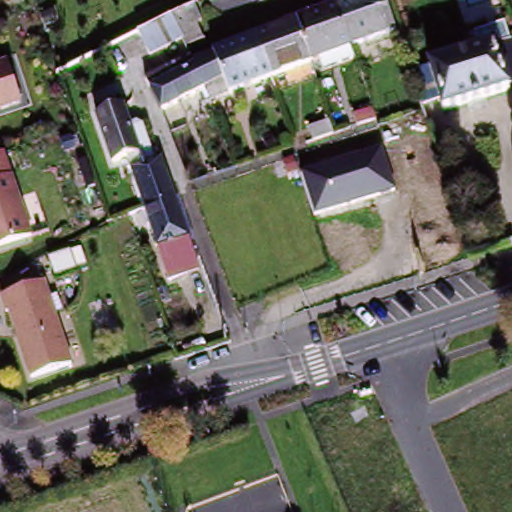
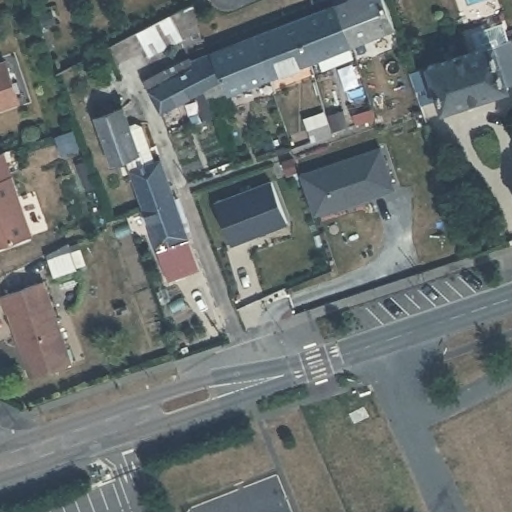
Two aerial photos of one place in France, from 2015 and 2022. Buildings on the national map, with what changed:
unchanged [(345,52),(331,13),(362,0),(374,0),(387,38),(345,52)]
unchanged [(183,42),(181,38),(148,55),(135,31),(179,8),(184,6),(187,4),(198,25),(193,27),(197,35),(183,42)]
unchanged [(24,13),(30,28),(14,33),(9,19),(24,13)]
unchanged [(313,74),(310,65),(301,68),(287,29),(331,13),(345,52),(341,54),(344,63),(313,74)]
unchanged [(259,39),(287,29),(301,68),(263,81),(249,43),(259,39)]
unchanged [(416,76),(463,60),(457,42),(489,32),(494,50),(496,50),(507,84),(490,90),(493,99),(430,119),(426,109),(404,115),(393,83),(416,76)]
unchanged [(183,60),(187,66),(206,59),(249,43),(263,81),(220,97),(222,103),(210,109),(202,88),(157,115),(140,83),(183,60)]
unchanged [(355,125),(348,105),(366,98),(373,119),(355,125)]
unchanged [(143,215),(130,174),(125,162),(106,167),(93,124),(121,116),(127,135),(138,130),(152,168),(158,165),(172,206),(143,215)]
unchanged [(304,128),(324,120),(328,133),(309,140),(304,128)]
unchanged [(383,150),(395,190),(316,214),(302,172),(383,150)]
unchanged [(17,170),(37,230),(0,243),(0,176),(17,170)]
new [(269,183),(284,223),(228,244),(213,203),(269,183)]
unchanged [(187,249),(194,271),(165,282),(143,215),(172,206),(187,249)]
unchanged [(0,310),(0,299),(40,285),(68,367),(27,381),(5,315),(2,316),(0,310)]

